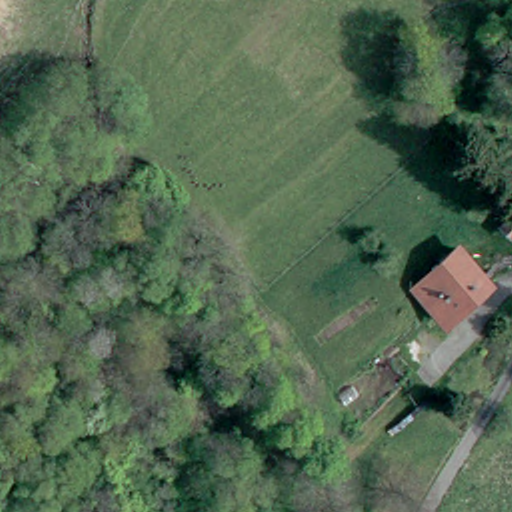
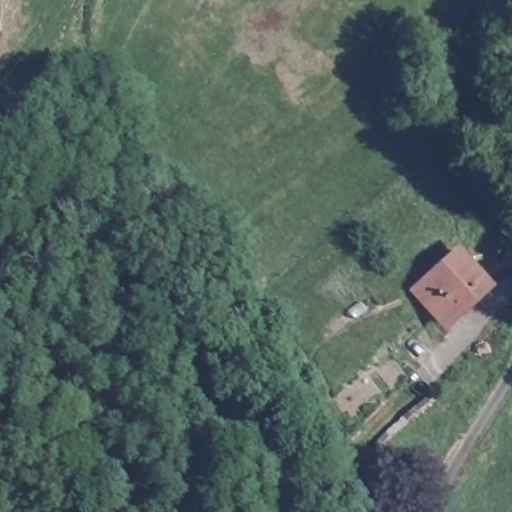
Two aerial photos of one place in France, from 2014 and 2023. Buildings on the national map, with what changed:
unchanged [(512,234),(503,226),(512,214),(512,234)]
unchanged [(417,291),(460,255),(488,287),(445,324),(417,291)]

